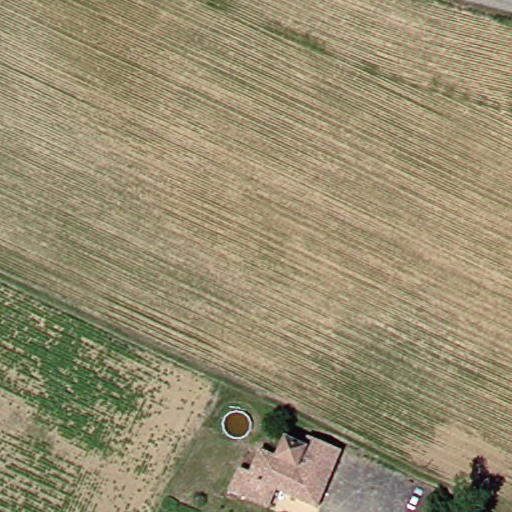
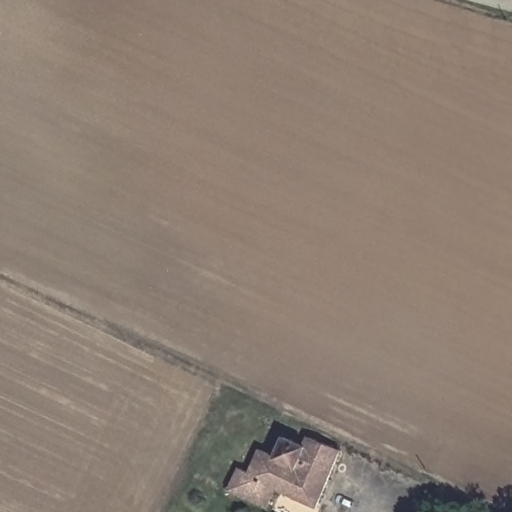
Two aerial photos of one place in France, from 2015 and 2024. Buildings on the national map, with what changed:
unchanged [(288,468),(302,440),(334,454),(310,509),(277,495),(271,512),(266,512),(224,493),(234,470),(245,475),(255,455),(288,468)]

